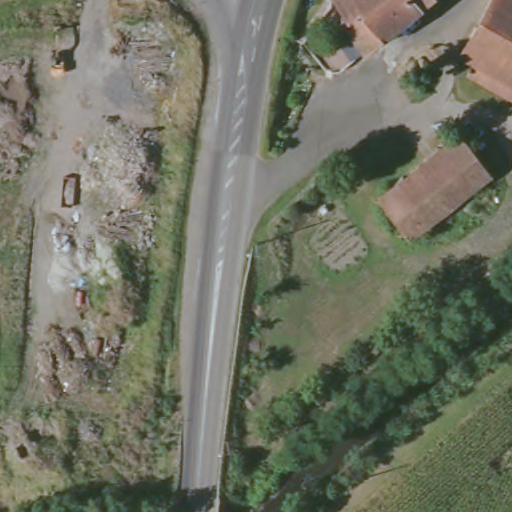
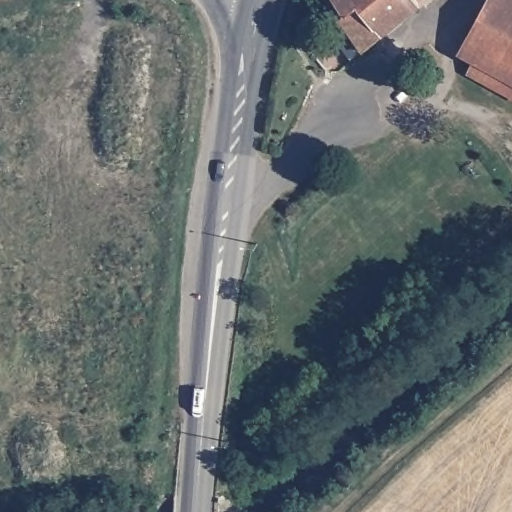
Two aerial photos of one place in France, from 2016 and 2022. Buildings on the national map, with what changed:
unchanged [(359,48),(336,18),(342,12),(334,0),(418,0),(359,48)]
unchanged [(465,58),(451,50),(479,0),(512,0),(512,99),(460,70),(465,58)]
demolished [(407,235),(374,196),(455,132),(486,171),(407,235)]

